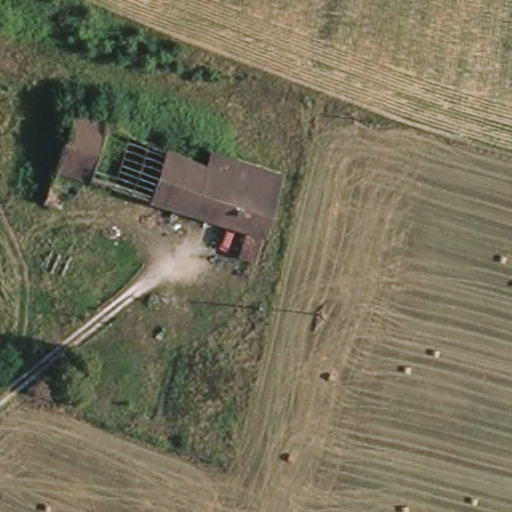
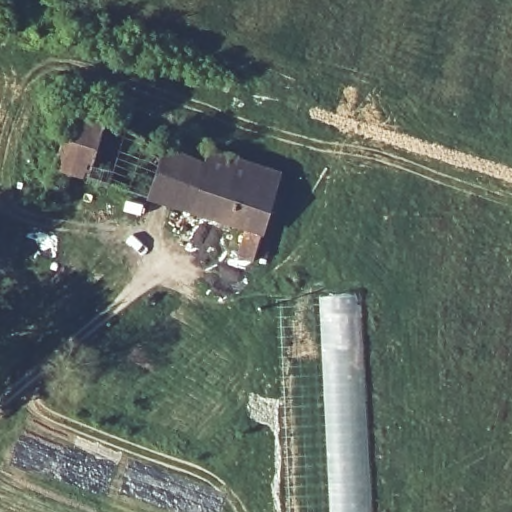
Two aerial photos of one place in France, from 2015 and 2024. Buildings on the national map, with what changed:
unchanged [(280,171),(253,258),(239,254),(249,225),(71,168),(68,177),(60,201),(45,196),(74,105),(108,117),(203,162),(211,147),(280,171)]
new [(359,292),(362,353),(371,485),(372,512),(327,512),(324,481),(318,295),(359,292)]

